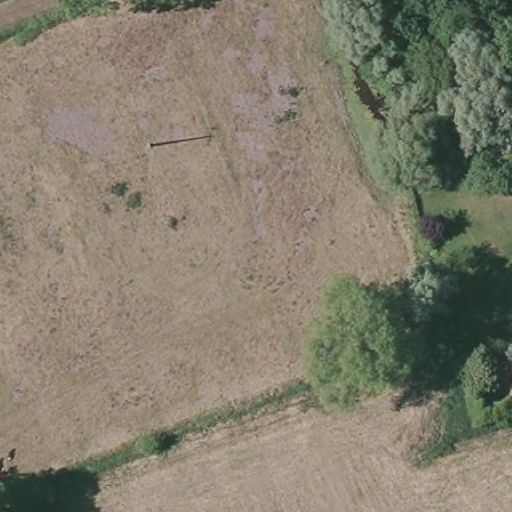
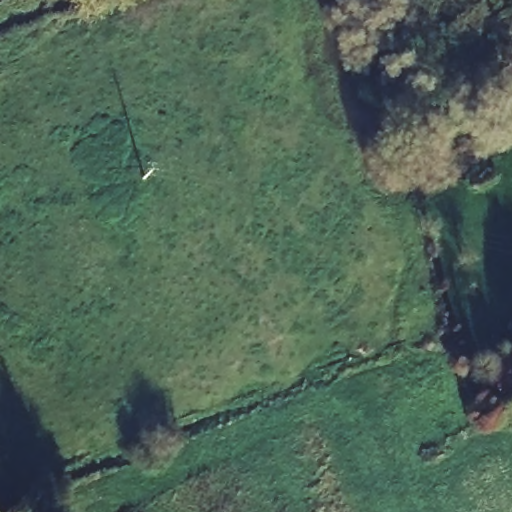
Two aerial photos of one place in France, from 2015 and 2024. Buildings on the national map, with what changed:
[]

